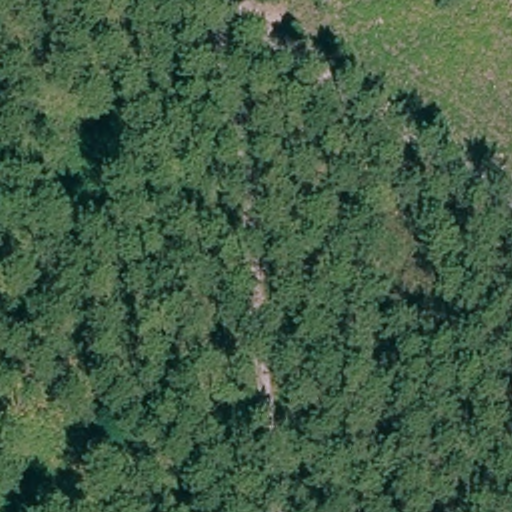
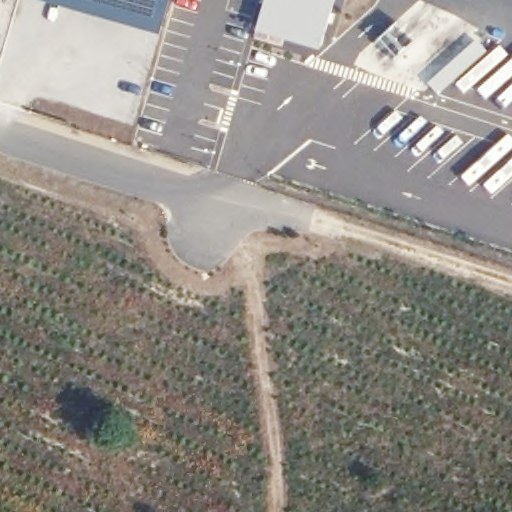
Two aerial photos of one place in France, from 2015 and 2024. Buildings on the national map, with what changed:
new [(39,0),(169,0),(159,36),(39,0)]
new [(255,33),(265,0),(335,0),(323,50),(255,33)]

